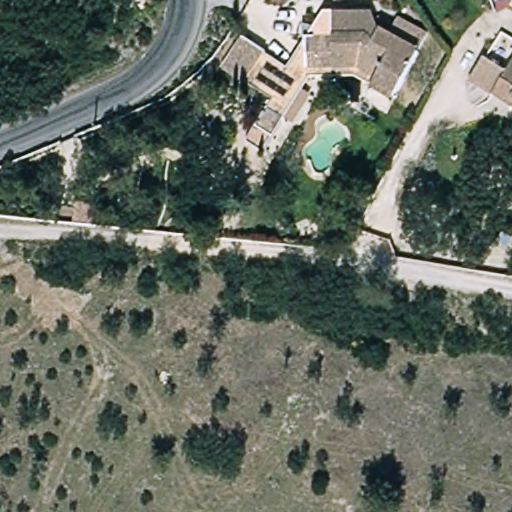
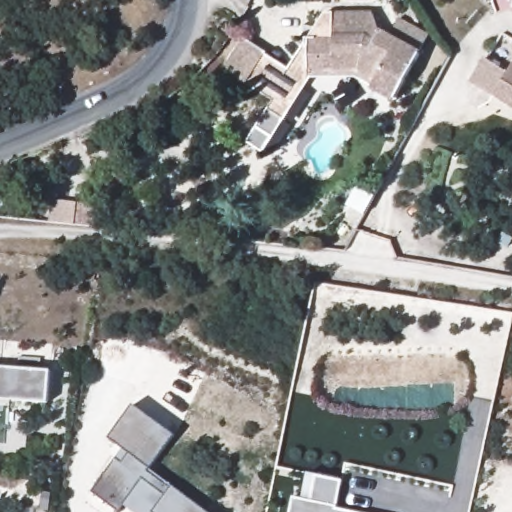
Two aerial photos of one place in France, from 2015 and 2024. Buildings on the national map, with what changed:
unchanged [(236,42),(282,67),(307,20),(370,21),(389,32),(398,16),(429,32),(392,99),(354,79),(307,78),(271,139),(254,128),(265,111),(259,108),(265,99),(218,74),(236,42)]
unchanged [(510,77),(512,74),(512,110),(473,88),(490,63),(510,77)]
new [(49,382),(44,414),(0,407),(0,375),(49,382)]
new [(116,453),(122,457),(128,448),(108,432),(134,399),(175,431),(147,467),(169,484),(171,481),(211,512),(154,512),(149,508),(163,491),(142,475),(122,499),(117,507),(90,486),(116,453)]
new [(291,495),(308,498),(314,473),(339,479),(333,506),(358,512),(287,512),(291,495)]
new [(142,475),(163,491),(149,508),(154,512),(139,512),(122,499),(142,475)]

